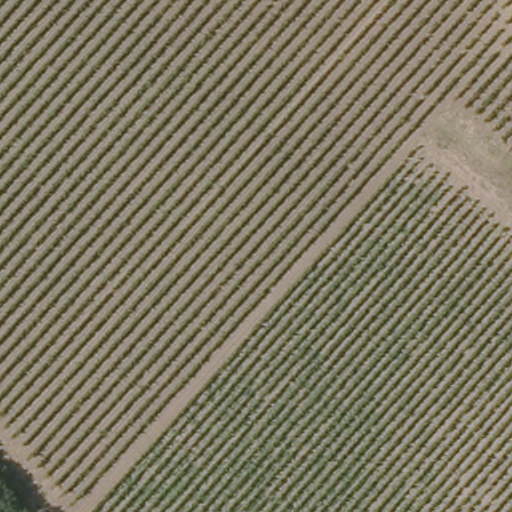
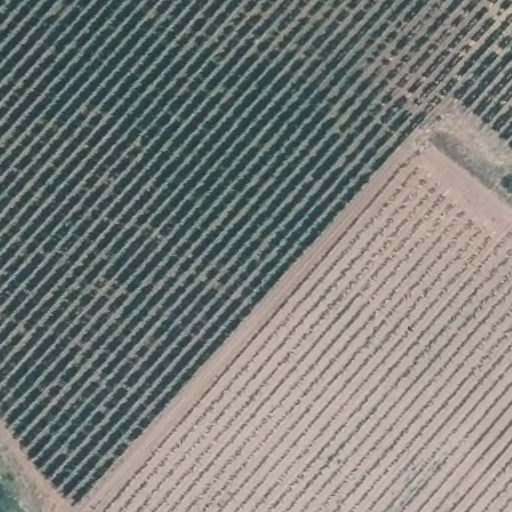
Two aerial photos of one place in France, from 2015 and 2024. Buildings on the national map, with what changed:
[]

